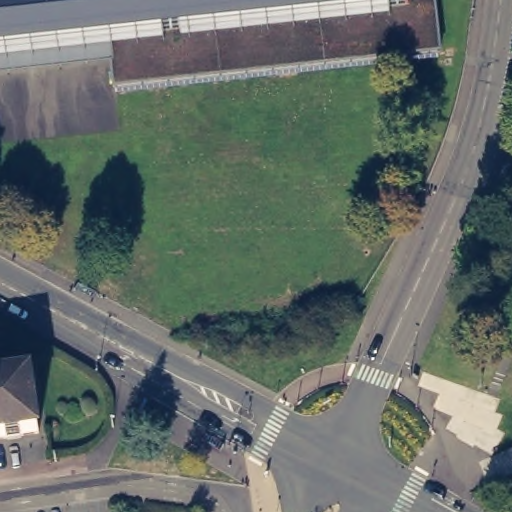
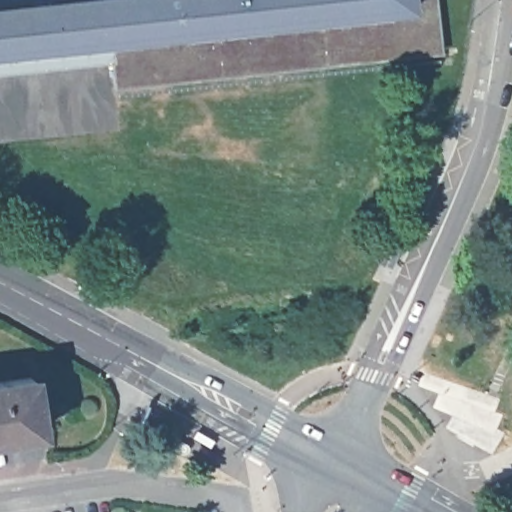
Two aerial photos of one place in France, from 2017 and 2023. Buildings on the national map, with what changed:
unchanged [(115,87),(110,39),(0,52),(0,5),(46,0),(434,0),(440,51),(115,87)]
unchanged [(31,372),(39,429),(0,435),(0,377),(31,372)]

